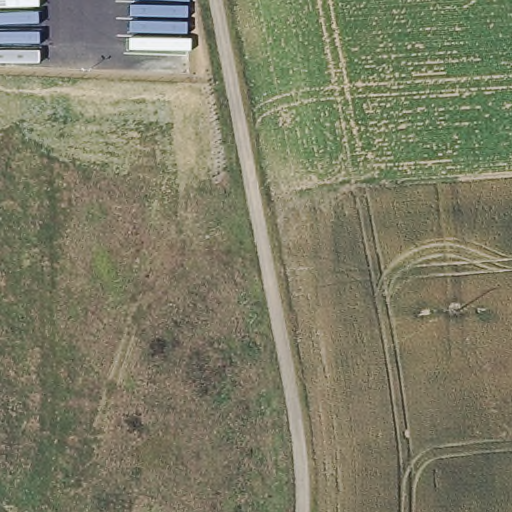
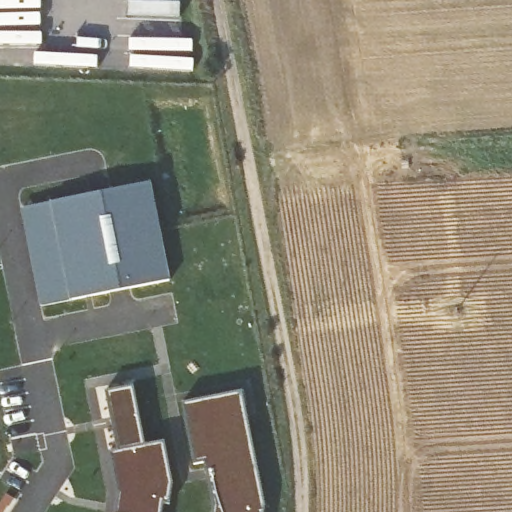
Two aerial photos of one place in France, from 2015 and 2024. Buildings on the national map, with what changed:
new [(152,180),(171,278),(73,298),(53,200),(152,180)]
new [(73,297),(44,303),(25,207),(53,201),(73,297)]
new [(166,438),(175,480),(165,500),(164,512),(116,512),(120,491),(111,449),(119,447),(107,389),(136,383),(147,442),(166,438)]
new [(205,460),(195,462),(184,400),(243,388),(267,502),(265,512),(213,512),(215,504),(205,460)]

